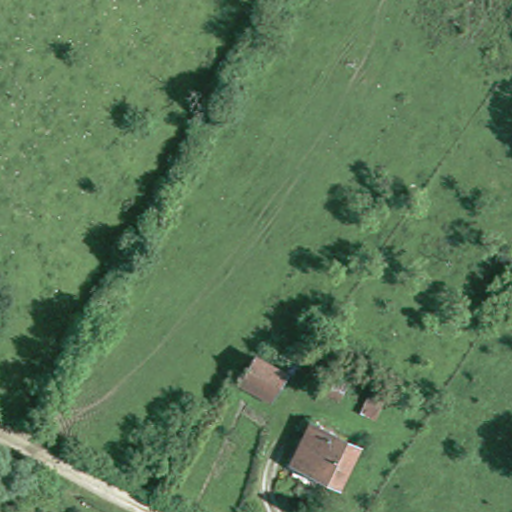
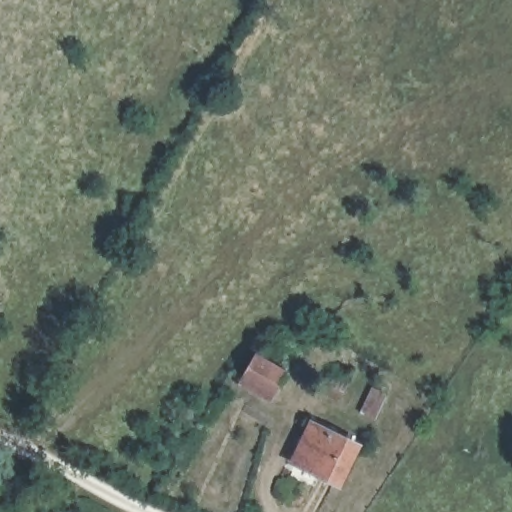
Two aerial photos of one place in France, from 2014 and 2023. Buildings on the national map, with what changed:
unchanged [(485,349),(474,341),(495,309),(508,319),(485,349)]
unchanged [(294,374),(283,397),(251,382),(261,359),(294,374)]
unchanged [(361,447),(344,480),(304,464),(314,440),(313,439),(318,427),(361,447)]

